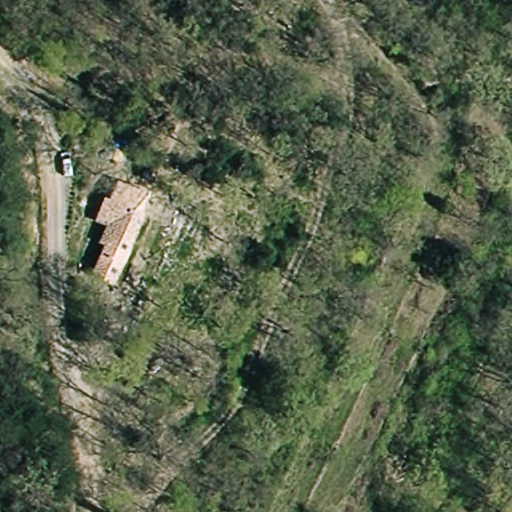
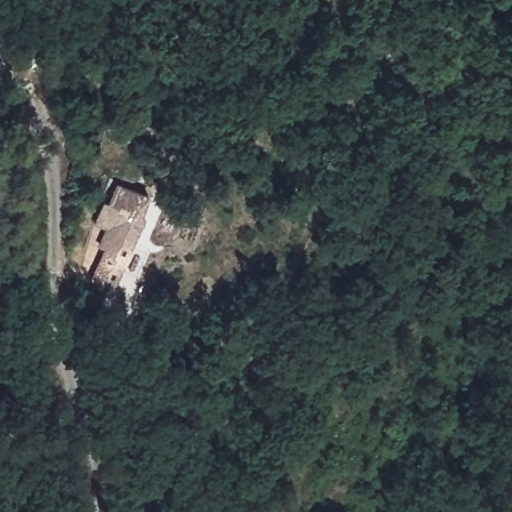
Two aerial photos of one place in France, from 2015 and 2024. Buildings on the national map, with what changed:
unchanged [(116,288),(94,278),(125,210),(146,218),(116,288)]

